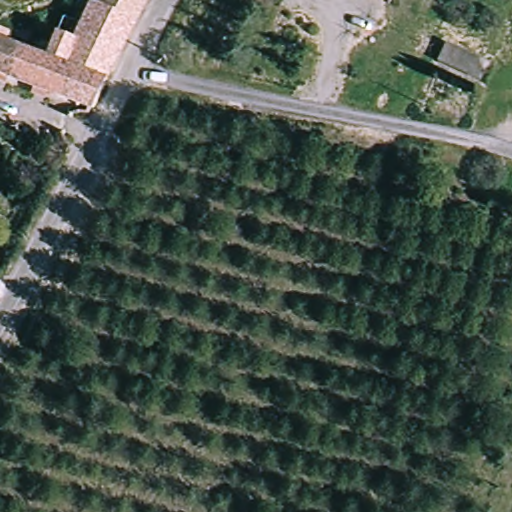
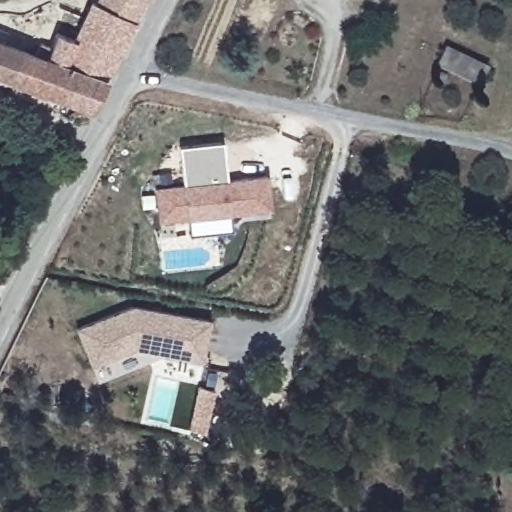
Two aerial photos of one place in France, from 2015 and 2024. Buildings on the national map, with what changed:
unchanged [(0,78),(0,27),(8,30),(2,44),(16,50),(32,56),(37,45),(48,48),(54,35),(71,40),(87,4),(94,5),(96,0),(143,0),(137,11),(111,61),(86,111),(4,80),(0,78)]
unchanged [(437,66),(444,48),(487,65),(479,82),(437,66)]
new [(159,210),(156,187),(185,184),(181,145),(224,140),(226,162),(216,162),(218,180),(267,175),(271,207),(176,217),(160,219),(159,210)]
new [(201,360),(135,347),(92,365),(75,327),(133,304),(210,318),(201,360)]

